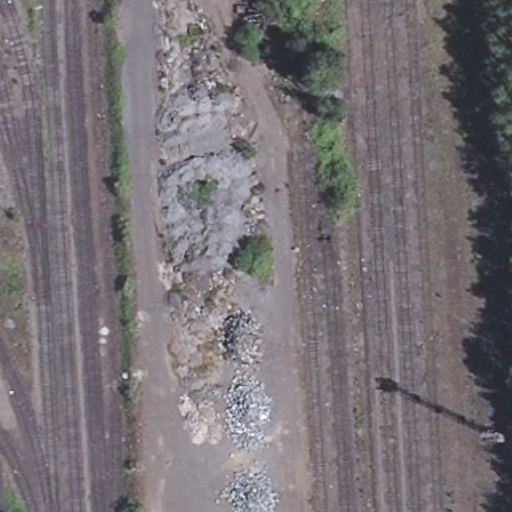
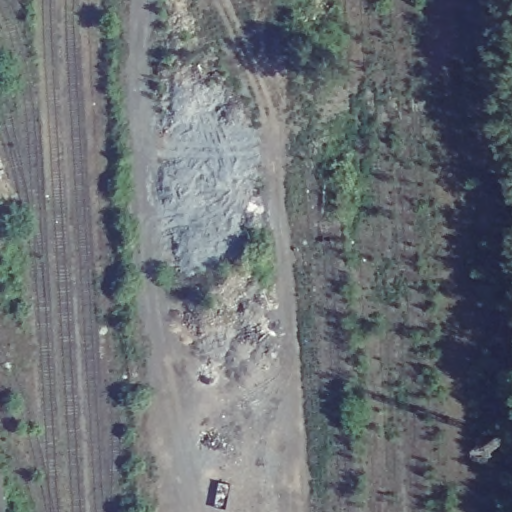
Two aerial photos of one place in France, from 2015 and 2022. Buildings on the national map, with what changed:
[]

